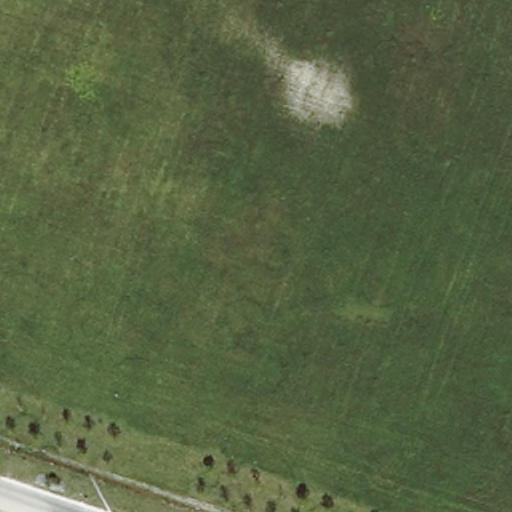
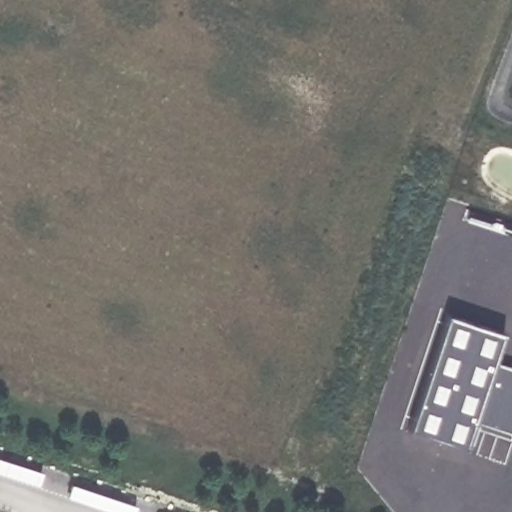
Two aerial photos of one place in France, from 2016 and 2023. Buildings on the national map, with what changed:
new [(447,313),(504,332),(495,360),(512,366),(512,432),(475,420),(466,448),(408,430),(447,313)]

